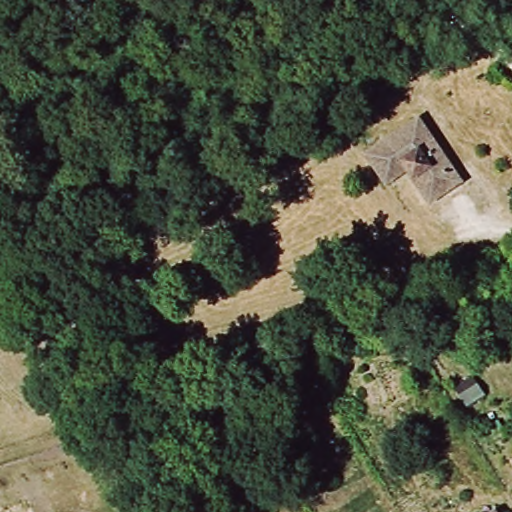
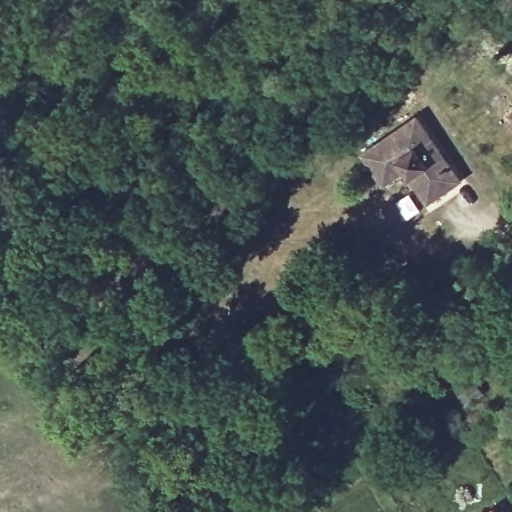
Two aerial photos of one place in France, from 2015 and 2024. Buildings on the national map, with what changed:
unchanged [(362,159),(417,120),(462,183),(430,205),(408,173),(385,190),(362,159)]

